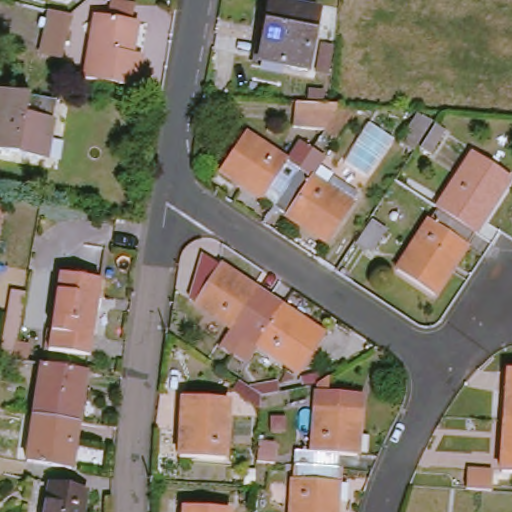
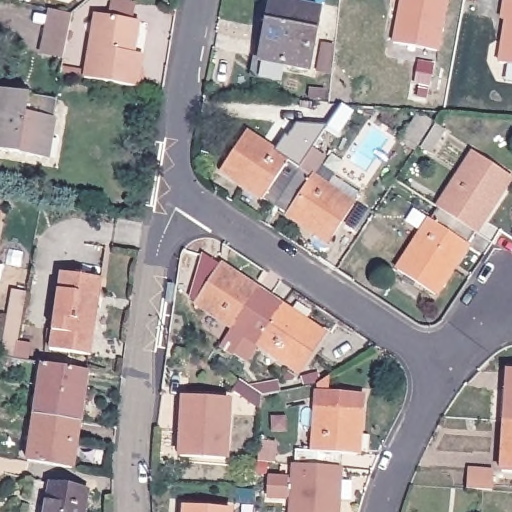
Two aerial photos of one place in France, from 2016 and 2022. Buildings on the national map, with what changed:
unchanged [(63,0),(80,0),(75,4),(63,0)]
new [(393,41),(401,0),(447,0),(437,50),(393,41)]
new [(505,20),(500,20),(504,0),(512,2),(512,64),(498,61),(505,20)]
unchanged [(113,22),(117,5),(140,9),(137,26),(143,27),(137,59),(147,60),(142,91),(89,83),(100,19),(113,22)]
unchanged [(262,66),(272,9),(317,18),(308,74),(262,66)]
unchanged [(70,15),(62,55),(42,51),(49,10),(70,15)]
unchanged [(0,152),(0,93),(25,97),(60,103),(53,144),(48,144),(45,161),(0,152)]
unchanged [(345,140),(332,132),(331,134),(300,131),(302,105),(336,108),(348,109),(347,110),(358,118),(345,140)]
unchanged [(415,150),(402,142),(417,115),(434,122),(415,150)]
unchanged [(425,146),(437,124),(447,131),(436,151),(425,146)]
unchanged [(280,204),(229,170),(253,133),(295,159),(306,144),(317,150),(280,204)]
unchanged [(280,204),(317,150),(330,159),(370,185),(358,204),(335,240),(280,204)]
unchanged [(440,207),(475,154),(512,179),(477,232),(440,207)]
unchanged [(477,232),(437,293),(400,269),(440,207),(477,232)]
unchanged [(7,216),(4,231),(0,251),(0,215),(7,216)]
unchanged [(358,243),(373,220),(387,228),(374,250),(358,243)]
unchanged [(249,340),(200,308),(225,271),(273,303),(249,340)]
unchanged [(62,319),(67,279),(108,284),(102,324),(62,319)]
unchanged [(5,360),(15,312),(18,293),(31,295),(44,298),(41,315),(35,348),(57,353),(55,369),(52,368),(20,363),(5,360)]
unchanged [(249,340),(273,303),(327,339),(305,376),(261,349),(250,365),(238,357),(249,340)]
unchanged [(102,324),(97,358),(57,353),(62,319),(102,324)]
unchanged [(77,426),(42,419),(52,368),(55,369),(93,375),(85,427),(77,426)]
unchanged [(300,464),(301,450),(319,450),(322,383),(336,374),(335,388),(369,391),(365,454),(347,453),(347,467),(300,464)]
unchanged [(262,394),(252,387),(276,382),(277,391),(262,394)]
unchanged [(187,461),(190,402),(234,404),(230,464),(187,461)]
unchanged [(35,464),(42,419),(77,426),(75,444),(82,444),(77,472),(35,464)]
unchanged [(512,443),(512,475),(510,475),(512,443)]
unchanged [(344,512),(298,512),(298,508),(277,506),(277,481),(300,482),(300,464),(347,467),(344,512)]
unchanged [(493,494),(476,493),(477,474),(502,476),(501,494),(493,494)]
unchanged [(53,484),(88,492),(84,512),(47,512),(53,484)]
unchanged [(185,506),(231,509),(231,512),(185,512),(185,506)]

